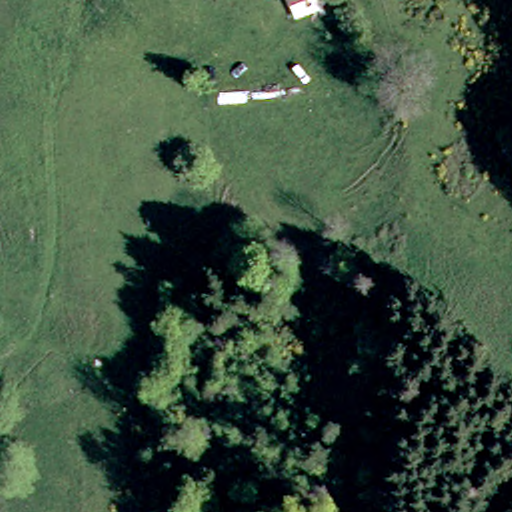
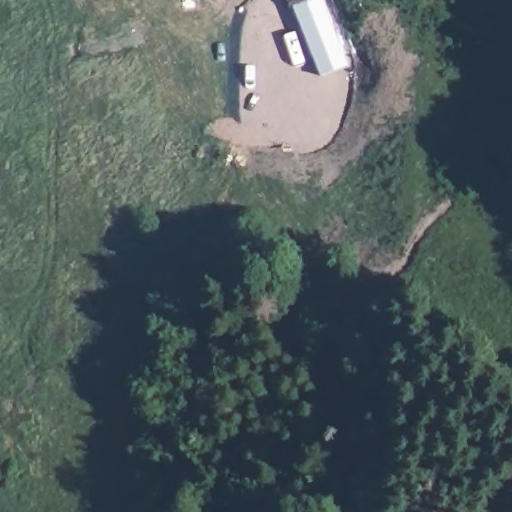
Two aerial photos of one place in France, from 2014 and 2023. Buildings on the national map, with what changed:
demolished [(296,0),(289,3),(288,0),(296,0)]
new [(294,15),(289,3),(288,0),(327,0),(343,48),(313,61),(294,15)]

